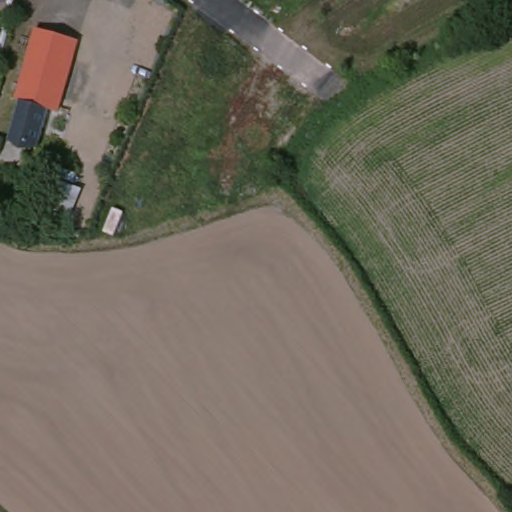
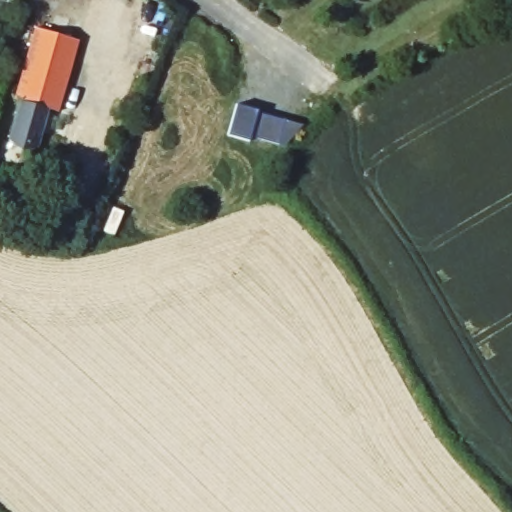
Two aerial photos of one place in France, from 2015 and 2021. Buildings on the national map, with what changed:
unchanged [(77,39),(58,109),(12,94),(33,27),(77,39)]
unchanged [(58,109),(43,157),(0,142),(12,94),(58,109)]
new [(258,108),(258,112),(305,124),(287,145),(253,136),(252,140),(228,134),(236,104),(258,108)]

